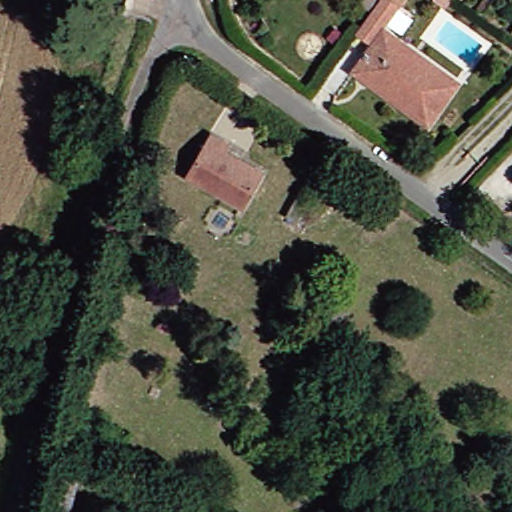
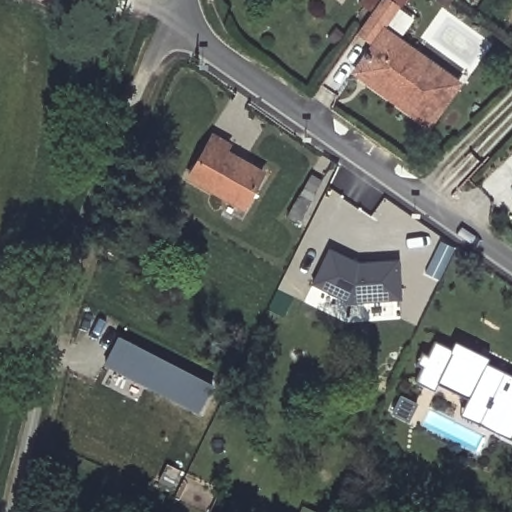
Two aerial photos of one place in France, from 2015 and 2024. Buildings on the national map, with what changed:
unchanged [(380,47),(362,34),(367,28),(386,0),(393,0),(403,8),(387,31),(462,85),(433,124),(405,104),(362,73),(366,67),(380,47)]
unchanged [(232,144),(229,151),(267,173),(248,207),(195,177),(181,168),(192,148),(206,156),(217,136),(232,144)]
unchanged [(299,195),(310,201),(298,223),(287,217),(299,195)]
new [(401,301),(352,305),(312,284),(329,248),(358,262),(400,260),(401,301)]
new [(119,334),(212,383),(200,408),(106,359),(119,334)]
new [(470,399),(438,384),(435,391),(417,381),(423,368),(417,365),(423,353),(430,355),(435,343),(452,350),(456,343),(489,358),(487,364),(512,377),(512,441),(462,415),(470,399)]

